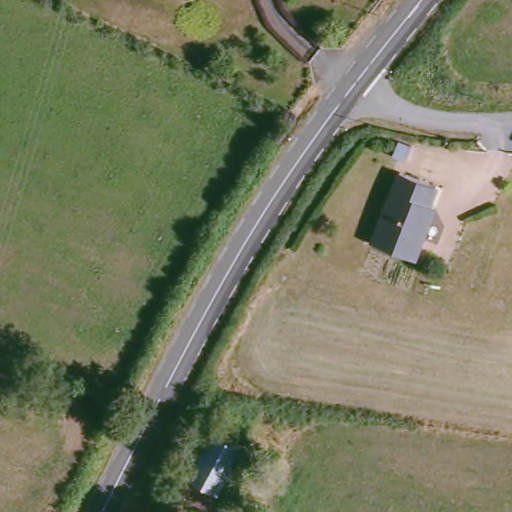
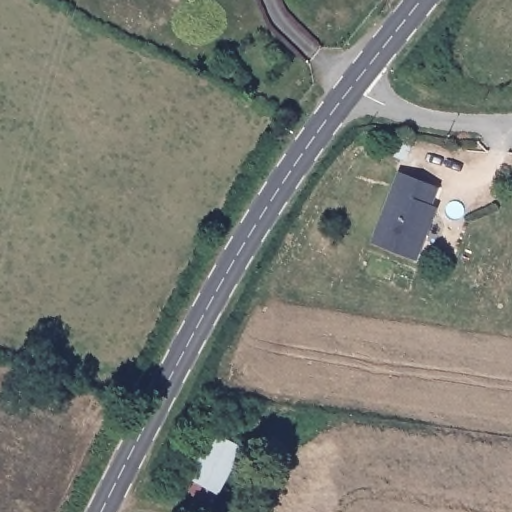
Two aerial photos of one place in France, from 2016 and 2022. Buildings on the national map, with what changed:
unchanged [(387,159),(393,144),(405,149),(399,164),(387,159)]
unchanged [(367,246),(395,175),(432,189),(425,207),(430,210),(425,224),(410,263),(367,246)]
unchanged [(250,447),(216,512),(204,512),(185,501),(222,431),(250,447)]

